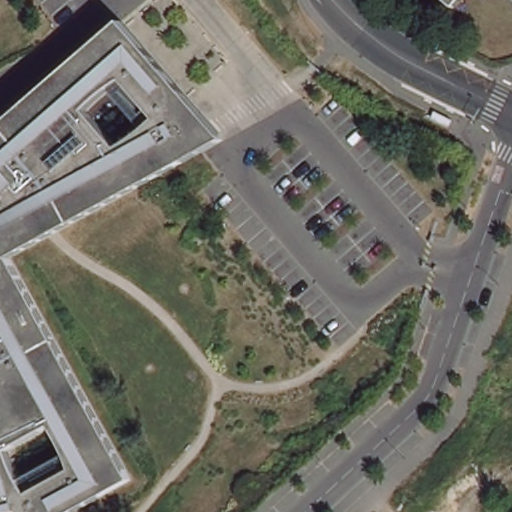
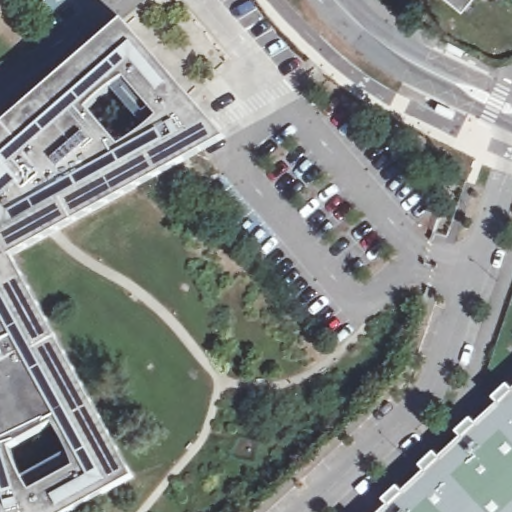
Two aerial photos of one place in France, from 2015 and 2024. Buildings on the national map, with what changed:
unchanged [(457,10),(446,0),(467,0),(457,10)]
unchanged [(121,147),(122,147),(161,119),(162,118),(101,47),(124,27),(220,137),(34,239),(21,216),(129,157),(121,147)]
unchanged [(162,118),(161,119),(127,80),(125,81),(106,95),(90,110),(122,147),(121,147),(129,157),(21,216),(34,239),(9,253),(12,258),(10,260),(129,476),(63,512),(40,512),(30,493),(77,467),(75,463),(67,444),(56,425),(11,450),(10,446),(0,449),(0,135),(101,47),(162,118)]
new [(439,459),(434,453),(471,420),(476,425),(498,404),(494,398),(507,386),(512,391),(512,512),(371,512),(397,488),(401,493),(439,459)]
unchanged [(16,462),(30,493),(40,512),(0,512),(0,449),(10,446),(11,450),(16,462)]

